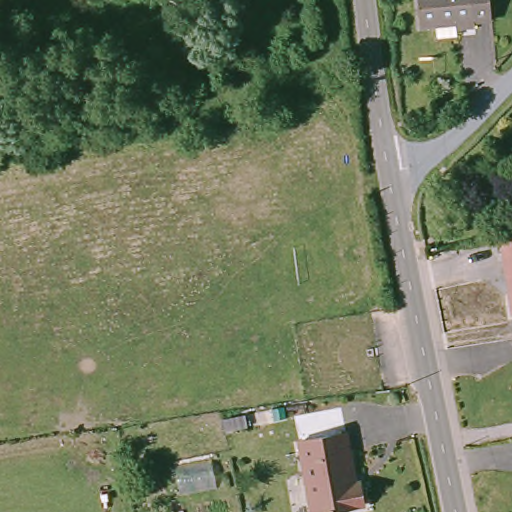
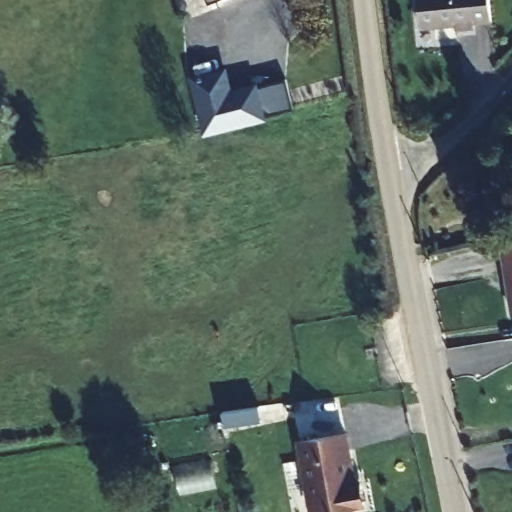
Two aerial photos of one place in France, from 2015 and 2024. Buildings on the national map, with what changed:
unchanged [(476,45),(459,47),(459,34),(417,39),(416,0),(491,0),(494,30),(475,32),(476,45)]
new [(191,75),(230,65),(235,87),(260,81),(261,87),(286,80),(293,106),(266,113),(267,120),(205,134),(191,75)]
unchanged [(512,274),(507,240),(512,239),(512,274)]
new [(271,407),(273,421),(235,426),(234,412),(271,407)]
unchanged [(358,512),(307,512),(298,446),(345,438),(351,490),(358,490),(361,511),(358,512)]

